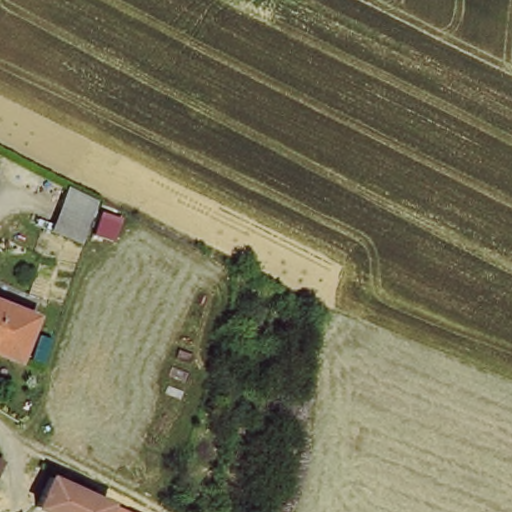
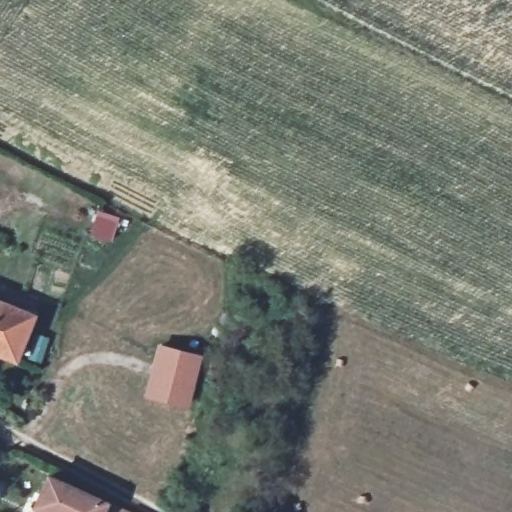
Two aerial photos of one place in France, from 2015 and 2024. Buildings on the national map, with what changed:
unchanged [(14,362),(0,358),(0,310),(30,320),(14,362)]
new [(199,356),(186,410),(142,399),(157,346),(199,356)]
unchanged [(36,507),(50,476),(108,505),(123,512),(46,512),(36,507)]

